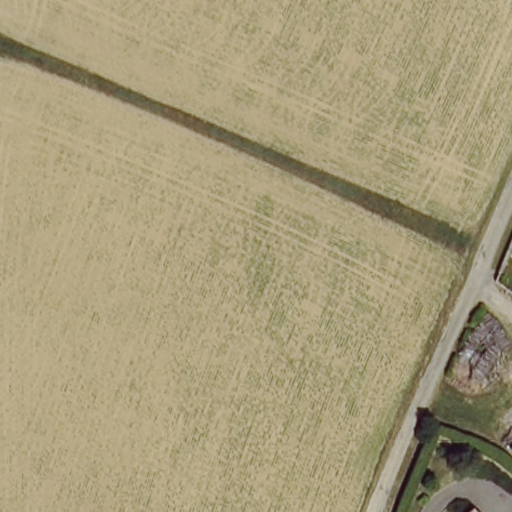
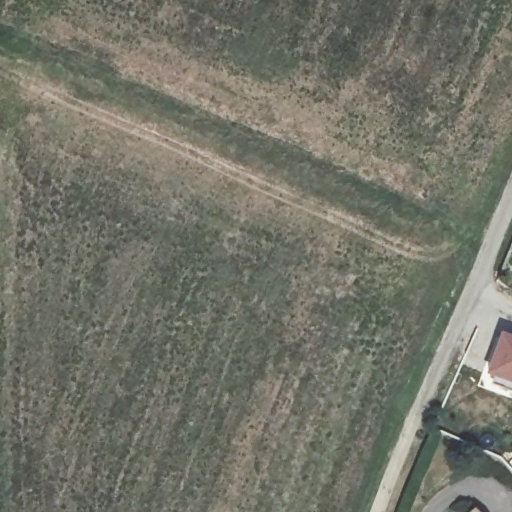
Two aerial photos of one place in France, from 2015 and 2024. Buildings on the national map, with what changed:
new [(500,331),(512,336),(512,389),(483,379),(500,331)]
unchanged [(472,505),(478,512),(464,512),(472,505)]

